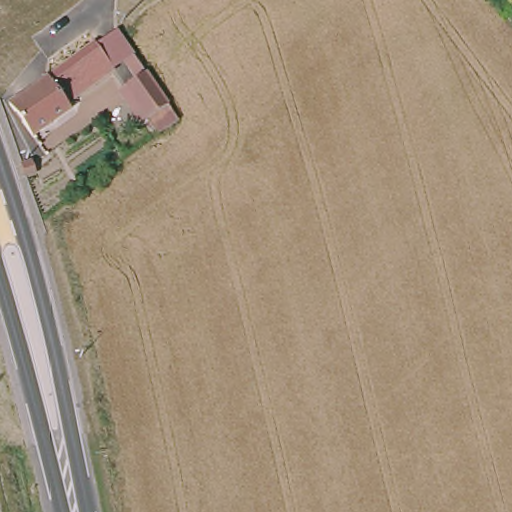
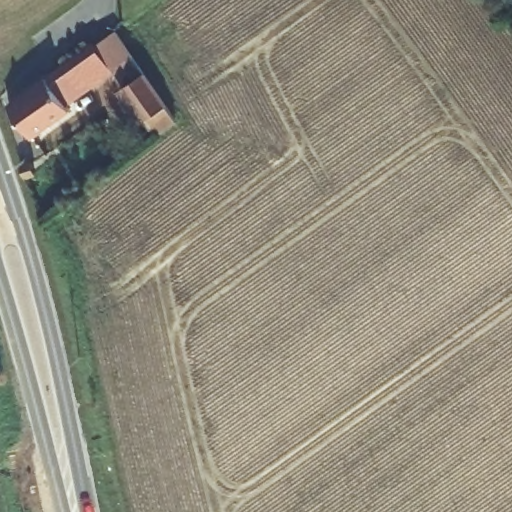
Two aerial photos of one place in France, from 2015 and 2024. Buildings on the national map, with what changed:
unchanged [(67,107),(71,113),(33,142),(6,107),(93,44),(95,47),(118,30),(133,52),(111,68),(114,72),(67,107)]
unchanged [(154,137),(123,90),(142,77),(174,122),(154,137)]
unchanged [(31,162),(35,174),(24,177),(21,167),(31,162)]

